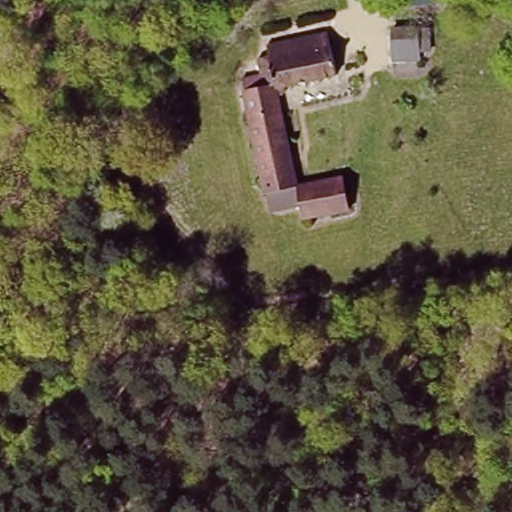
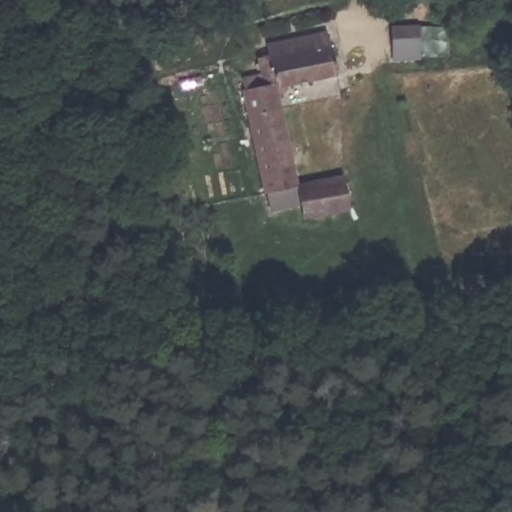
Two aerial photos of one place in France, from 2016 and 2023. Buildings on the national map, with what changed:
unchanged [(390,22),(428,20),(430,54),(394,55),(390,22)]
unchanged [(264,188),(249,108),(240,110),(236,87),(262,82),(257,58),(270,56),(269,45),(327,34),(334,74),(276,85),(294,183),(264,188)]
unchanged [(340,174),(347,207),(300,215),(294,183),(340,174)]

